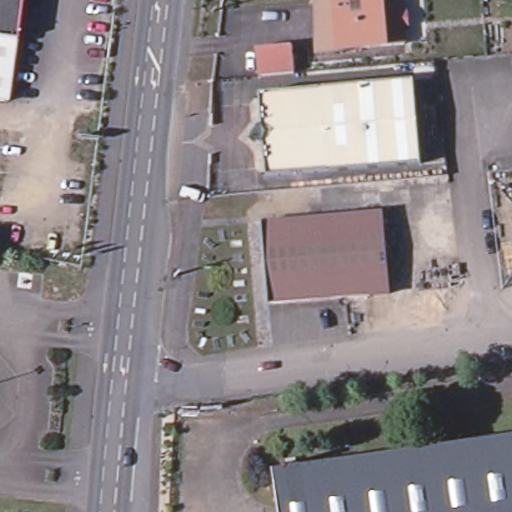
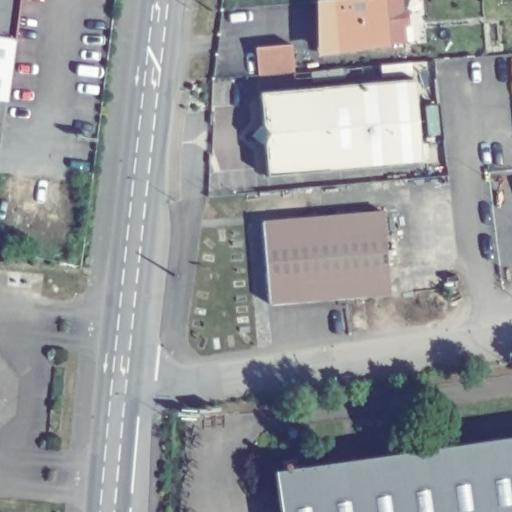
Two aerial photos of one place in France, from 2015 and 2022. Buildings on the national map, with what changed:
unchanged [(11,41),(0,40),(0,0),(17,0),(11,41)]
unchanged [(306,5),(355,0),(388,0),(389,15),(394,15),(395,30),(390,30),(392,49),(374,50),(311,55),(306,5)]
unchanged [(4,104),(0,103),(0,40),(11,41),(4,104)]
unchanged [(274,81),(256,82),(255,72),(254,55),(273,53),(289,52),(291,70),(292,80),(274,81)]
unchanged [(318,93),(411,85),(421,171),(327,179),(318,93)]
unchanged [(251,149),(258,138),(262,137),(258,99),(318,93),(327,179),(267,185),(264,157),(260,157),(251,149)]
unchanged [(311,220),(384,214),(391,295),(319,301),(311,220)]
unchanged [(268,305),(261,224),(311,220),(319,301),(268,305)]
unchanged [(512,444),(512,512),(281,512),(276,476),(512,444)]

